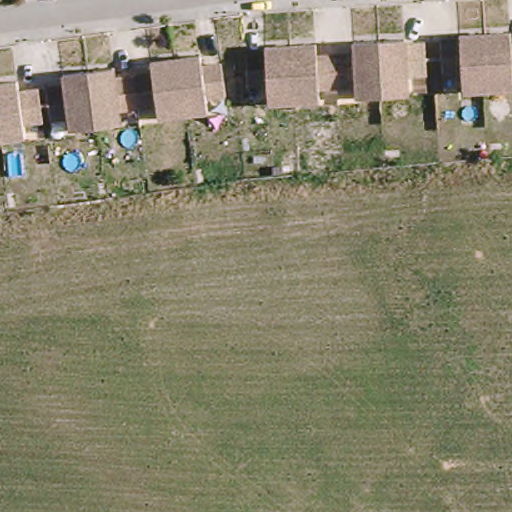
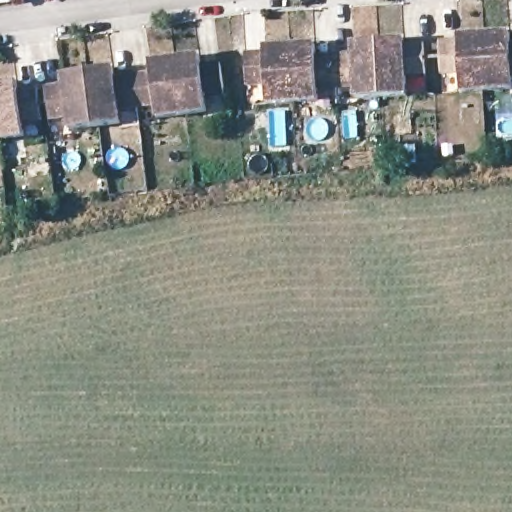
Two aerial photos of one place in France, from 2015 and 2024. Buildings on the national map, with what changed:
unchanged [(512,34),(512,89),(462,92),(459,31),(510,29),(512,34)]
unchanged [(316,39),(317,47),(353,45),(353,39),(425,36),(426,70),(407,70),(409,92),(356,96),(355,79),(321,82),(323,99),(268,103),(265,39),(316,39)]
unchanged [(37,80),(102,71),(105,82),(142,77),(140,65),(210,55),(215,87),(217,106),(198,109),(199,114),(148,121),(149,126),(111,132),(110,127),(60,134),(60,129),(44,132),(21,135),(21,140),(0,143),(0,85),(37,80)]

